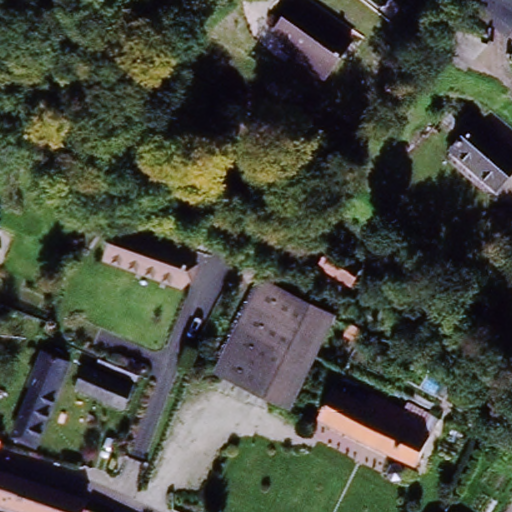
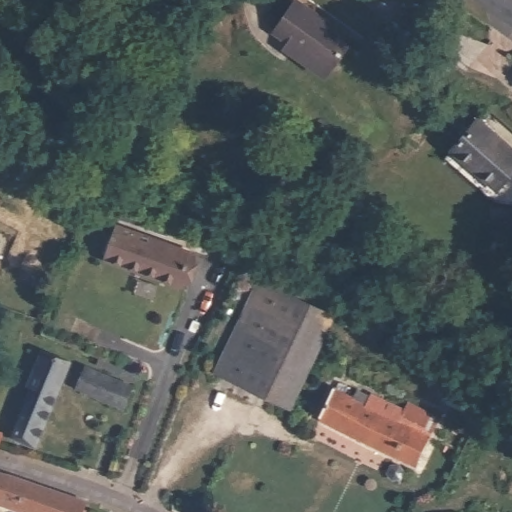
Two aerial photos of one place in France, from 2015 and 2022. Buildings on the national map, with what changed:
unchanged [(297,0),(351,41),(333,64),(293,34),(289,38),(274,28),(296,0),(297,0)]
unchanged [(512,151),(512,180),(503,193),(464,167),(488,134),(512,151)]
unchanged [(124,229),(197,260),(184,290),(110,260),(124,229)]
unchanged [(332,253),(366,273),(356,288),(321,269),(332,253)]
unchanged [(333,316),(288,407),(213,368),(260,278),(333,316)]
unchanged [(39,445),(16,437),(37,387),(34,383),(49,349),(73,361),(39,445)]
unchanged [(122,379),(137,387),(128,409),(83,388),(80,391),(66,385),(77,361),(122,379)]
unchanged [(336,394),(356,405),(361,398),(374,404),(370,412),(389,421),(394,412),(408,419),(404,427),(434,443),(419,472),(322,424),(336,394)]
unchanged [(1,432),(0,435),(0,432),(1,432)]
unchanged [(85,505),(84,511),(84,512),(14,512),(0,508),(0,476),(85,505)]

